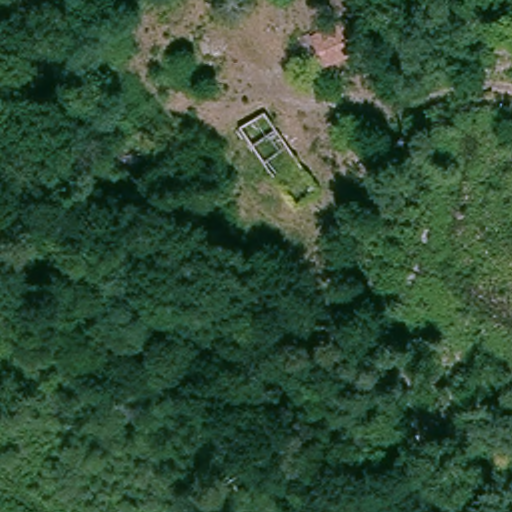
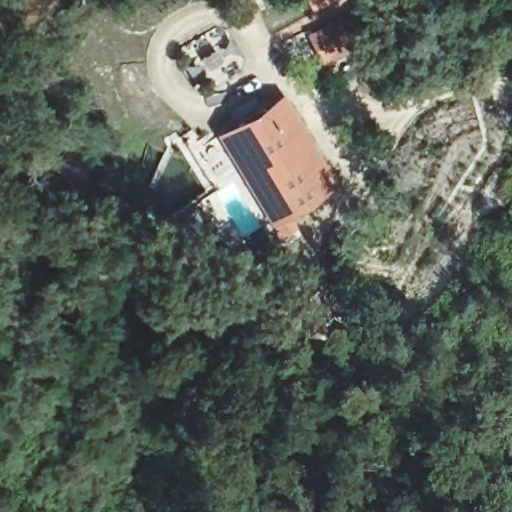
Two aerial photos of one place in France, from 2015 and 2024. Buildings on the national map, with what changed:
unchanged [(363,54),(327,71),(312,40),(347,16),(363,54)]
new [(272,224),(216,132),(282,93),(340,183),(272,224)]
demolished [(267,110),(320,190),(293,207),(239,128),(267,110)]

